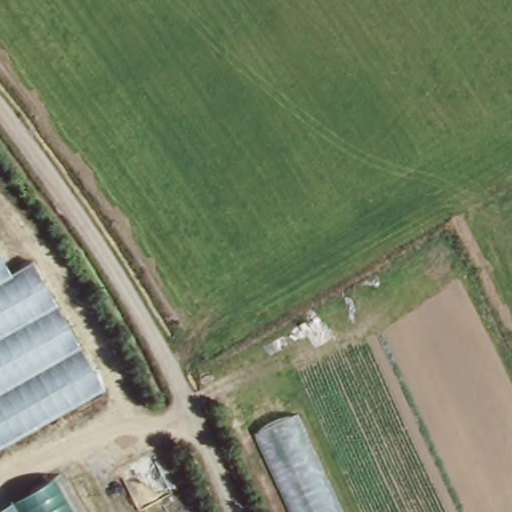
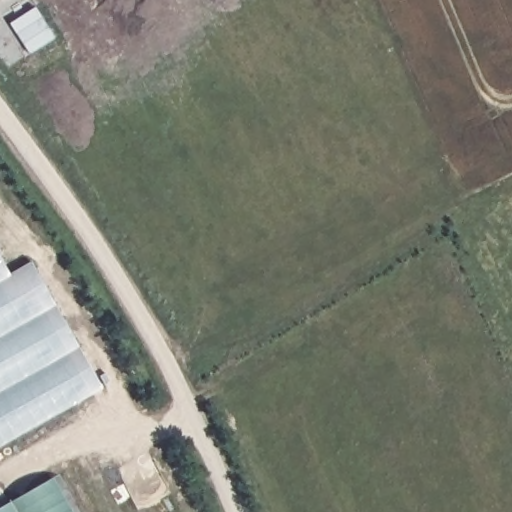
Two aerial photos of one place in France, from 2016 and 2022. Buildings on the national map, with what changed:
unchanged [(12,279),(7,270),(28,257),(103,382),(0,440),(0,286),(12,279)]
unchanged [(7,270),(12,279),(0,286),(0,258),(7,270)]
demolished [(237,391),(277,372),(343,512),(292,512),(237,391)]
unchanged [(52,477),(73,512),(16,512),(10,501),(52,477)]
unchanged [(10,501),(16,512),(0,512),(0,507),(10,501)]

